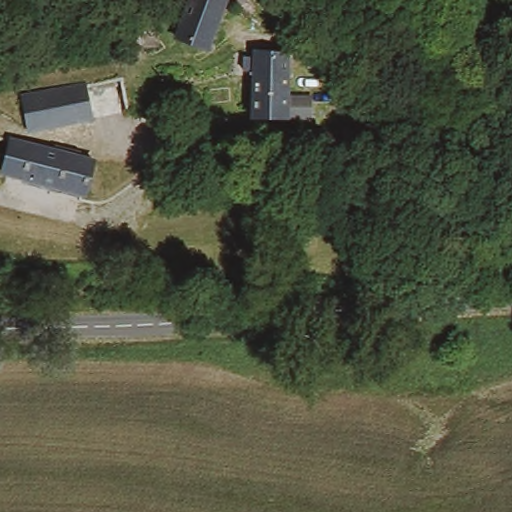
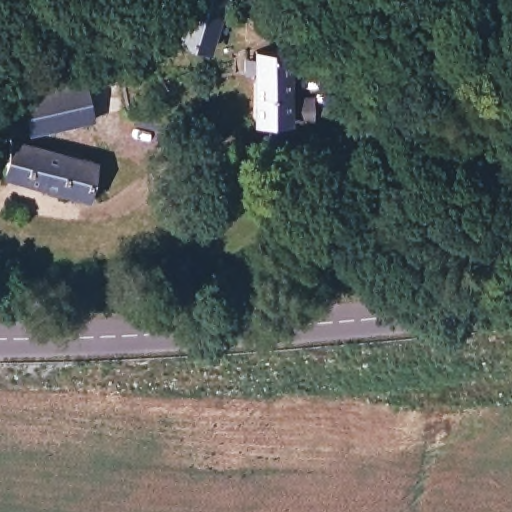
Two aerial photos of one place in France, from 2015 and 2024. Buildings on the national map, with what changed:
unchanged [(170,42),(185,0),(224,0),(206,51),(170,42)]
unchanged [(290,55),(289,97),(311,98),(310,123),(290,124),(250,121),(252,52),(290,55)]
unchanged [(28,132),(21,96),(86,83),(93,120),(28,132)]
unchanged [(100,162),(85,200),(0,169),(0,155),(8,134),(100,162)]

